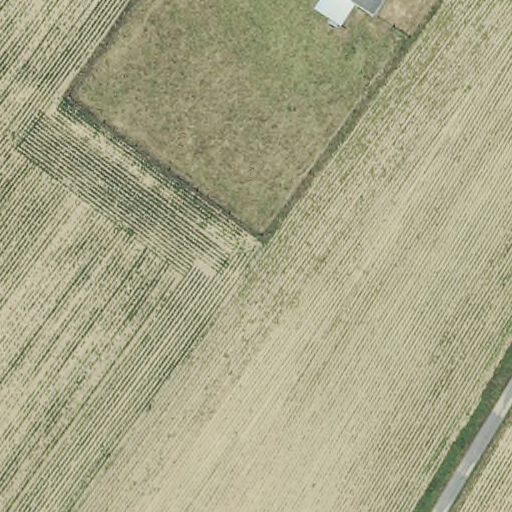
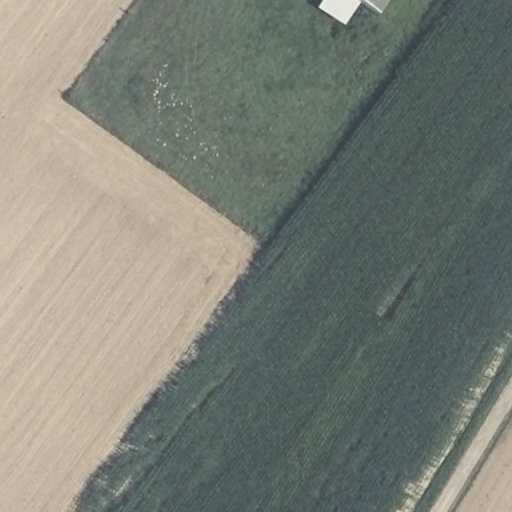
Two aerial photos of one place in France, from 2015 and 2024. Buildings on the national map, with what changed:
unchanged [(365,22),(334,0),(381,0),(365,22)]

